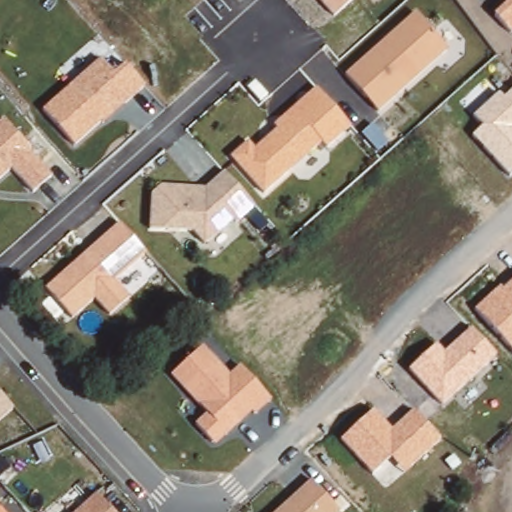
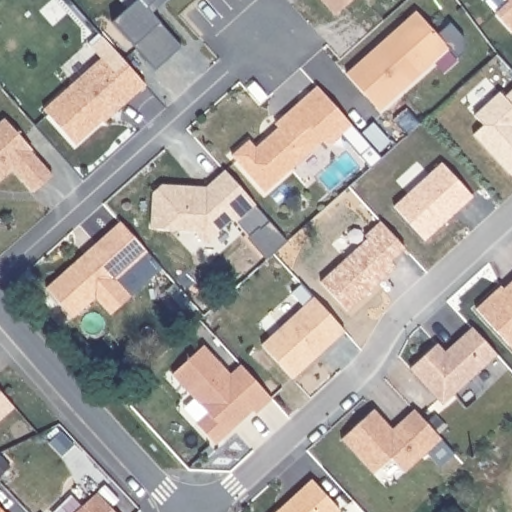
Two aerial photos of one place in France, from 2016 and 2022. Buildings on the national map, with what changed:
new [(132,43),(113,22),(135,0),(164,0),(149,13),(156,21),(179,47),(155,68),(132,43)]
unchanged [(334,15),(320,0),(351,0),(334,15)]
unchanged [(494,13),(507,1),(507,0),(512,0),(512,32),(494,13)]
unchanged [(379,111),(344,74),(415,10),(450,48),(379,111)]
unchanged [(44,109),(101,59),(114,73),(126,63),(146,86),(75,145),(44,109)]
unchanged [(316,87),(352,128),(264,198),(228,161),(316,87)]
unchanged [(473,134),(483,126),(473,115),(499,92),(504,97),(512,89),(512,172),(510,175),(473,134)]
unchanged [(53,175),(33,191),(11,168),(0,177),(0,121),(4,118),(53,175)]
new [(424,240),(394,206),(441,162),(471,197),(424,240)]
unchanged [(160,186),(200,189),(222,174),(256,205),(243,227),(231,222),(205,247),(192,233),(148,233),(148,198),(160,186)]
unchanged [(117,223),(145,254),(116,281),(131,296),(115,316),(95,299),(71,320),(45,288),(117,223)]
unchanged [(475,309),(499,286),(503,289),(512,281),(512,349),(475,309)]
new [(260,345),(302,306),(291,293),(300,284),(312,297),(344,329),(293,377),(260,345)]
unchanged [(410,369),(438,343),(446,352),(472,328),(496,355),(443,403),(410,369)]
unchanged [(196,422),(208,413),(172,374),(205,345),(231,374),(241,365),(271,399),(254,414),(252,410),(215,444),(196,422)]
unchanged [(0,421),(0,391),(15,409),(0,421)]
unchanged [(342,438),(374,410),(392,428),(413,410),(440,440),(404,472),(391,457),(371,475),(342,438)]
unchanged [(274,512),(311,478),(342,510),(339,512),(274,512)]
unchanged [(116,512),(73,512),(96,491),(116,512)]
unchanged [(0,512),(0,507),(5,512),(0,512)]

